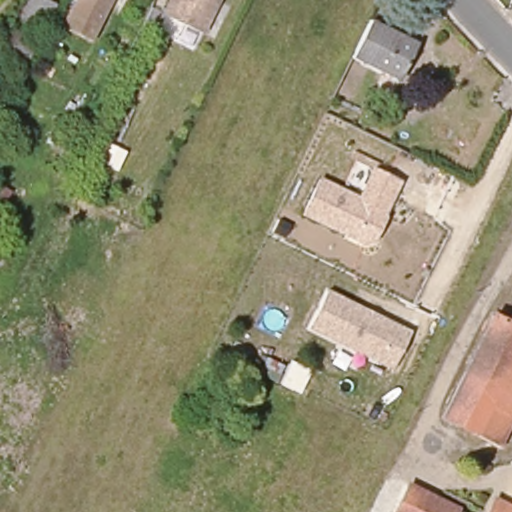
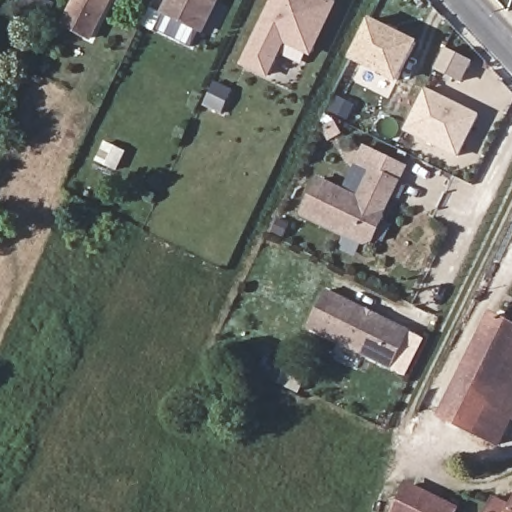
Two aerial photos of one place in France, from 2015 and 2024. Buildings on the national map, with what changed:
unchanged [(91,40),(59,26),(72,0),(113,0),(91,40)]
unchanged [(164,12),(169,0),(215,0),(201,31),(191,26),(164,12)]
new [(312,57),(285,44),(268,78),(242,65),(272,1),(269,0),(334,0),(338,2),(312,57)]
unchanged [(11,33),(24,7),(51,21),(36,47),(11,33)]
unchanged [(416,43),(397,81),(351,58),(370,19),(416,43)]
new [(445,48),(471,61),(461,79),(436,67),(445,48)]
new [(425,87),(478,114),(458,154),(406,127),(425,87)]
unchanged [(388,216),(376,241),(363,242),(301,214),(318,179),(357,196),(370,170),(355,164),(364,145),(408,166),(401,181),(385,214),(388,216)]
unchanged [(408,332),(391,369),(307,330),(327,291),(408,332)]
unchanged [(493,308),(512,318),(512,416),(498,441),(441,413),(493,308)]
unchanged [(396,512),(410,481),(463,508),(461,512),(396,512)]
unchanged [(512,512),(487,512),(493,498),(512,505),(512,512)]

